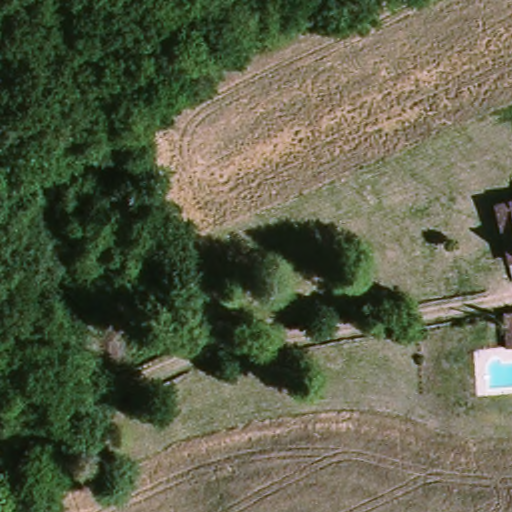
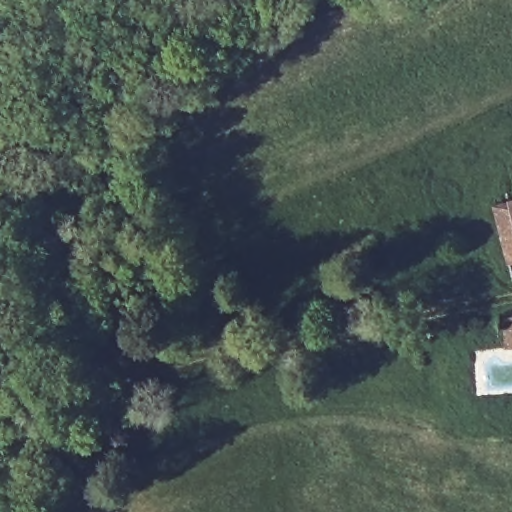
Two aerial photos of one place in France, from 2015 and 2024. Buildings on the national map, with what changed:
unchanged [(508,259),(497,201),(512,198),(512,259),(508,259)]
unchanged [(506,317),(512,316),(512,346),(509,346),(506,317)]

